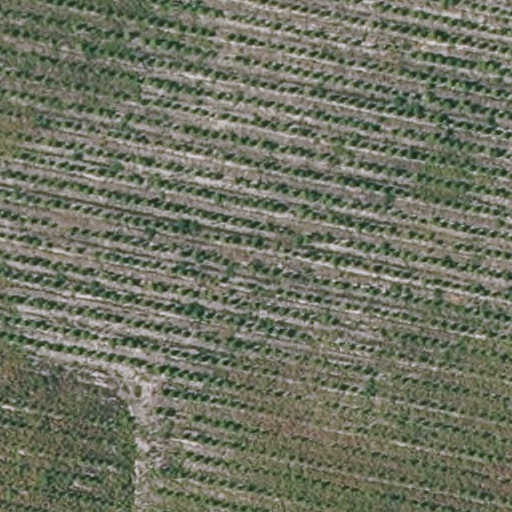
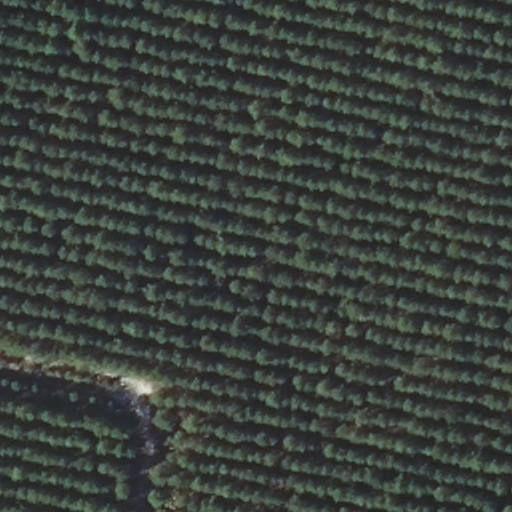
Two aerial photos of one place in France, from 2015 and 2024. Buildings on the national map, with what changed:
[]

